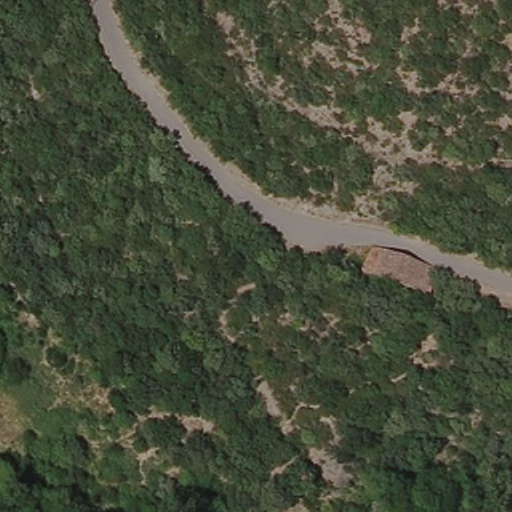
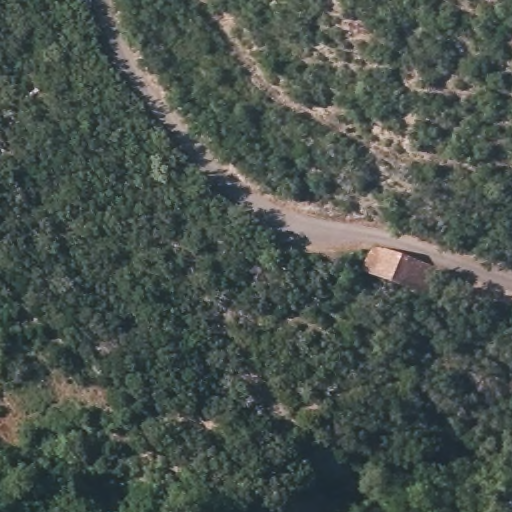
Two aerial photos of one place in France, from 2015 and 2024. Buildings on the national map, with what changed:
unchanged [(395,257),(437,272),(430,298),(367,280),(373,255),(395,257)]

